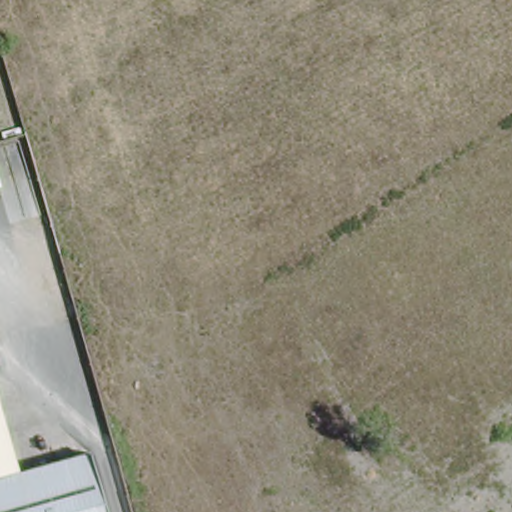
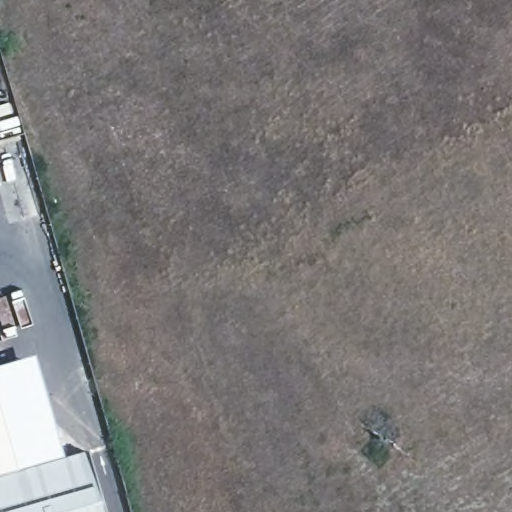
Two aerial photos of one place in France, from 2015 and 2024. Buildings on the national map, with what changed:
new [(36,357),(66,461),(18,473),(0,405),(0,368),(36,357)]
unchanged [(18,473),(86,457),(101,512),(0,512),(0,405),(18,473)]

